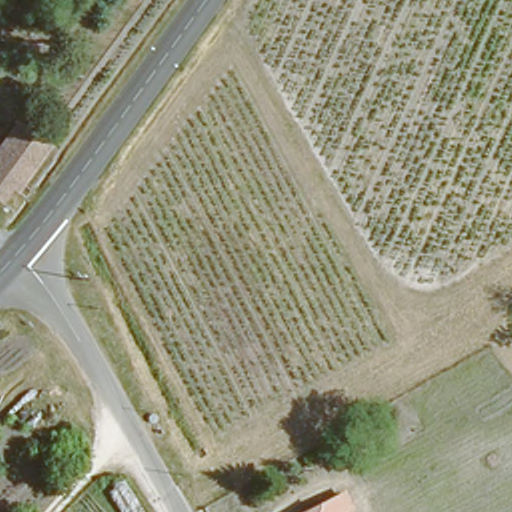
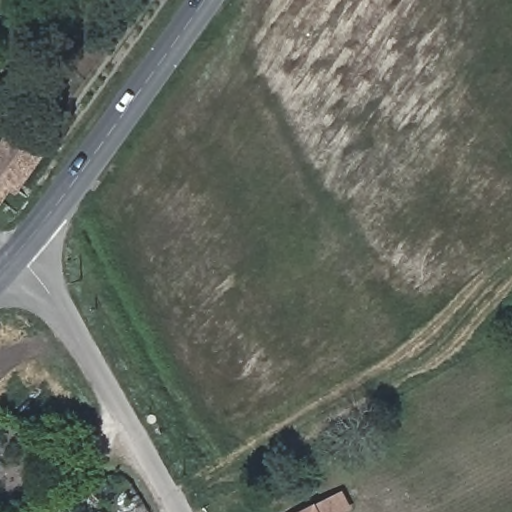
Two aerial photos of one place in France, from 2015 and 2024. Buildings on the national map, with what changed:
unchanged [(8,191),(0,185),(0,155),(14,136),(36,153),(8,191)]
unchanged [(339,512),(298,512),(344,488),(353,505),(339,512)]

